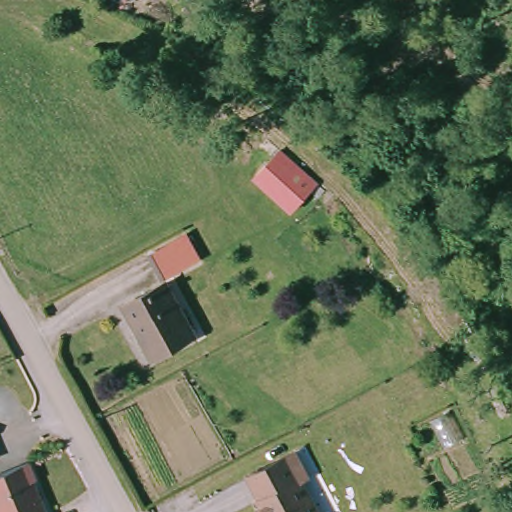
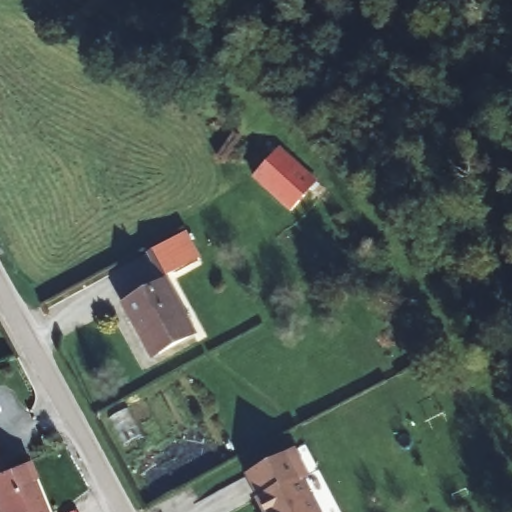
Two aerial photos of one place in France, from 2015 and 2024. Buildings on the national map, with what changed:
unchanged [(278,150),(315,188),(305,197),(288,212),(251,175),(267,160),(278,150)]
unchanged [(182,235),(195,262),(162,277),(148,251),(182,235)]
unchanged [(128,304),(165,286),(193,338),(154,356),(128,304)]
unchanged [(252,475),(291,453),(321,512),(272,512),(252,475)]
unchanged [(35,477),(31,480),(44,512),(0,512),(0,511),(0,469),(27,458),(35,477)]

